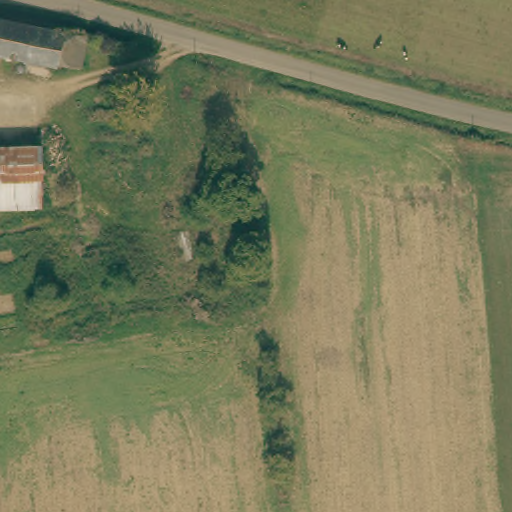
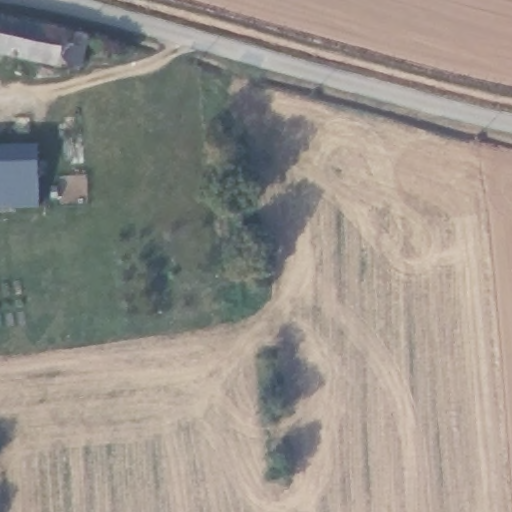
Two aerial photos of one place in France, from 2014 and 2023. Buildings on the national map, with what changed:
unchanged [(91,68),(67,63),(65,69),(0,54),(0,22),(95,40),(91,68)]
unchanged [(40,174),(0,173),(0,137),(41,140),(40,174)]
unchanged [(39,209),(0,207),(0,173),(40,174),(39,209)]

